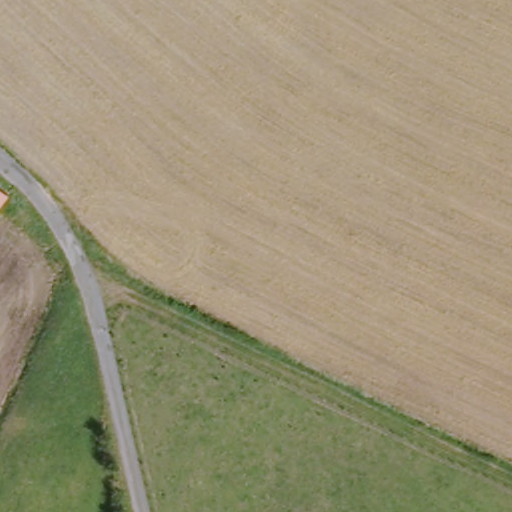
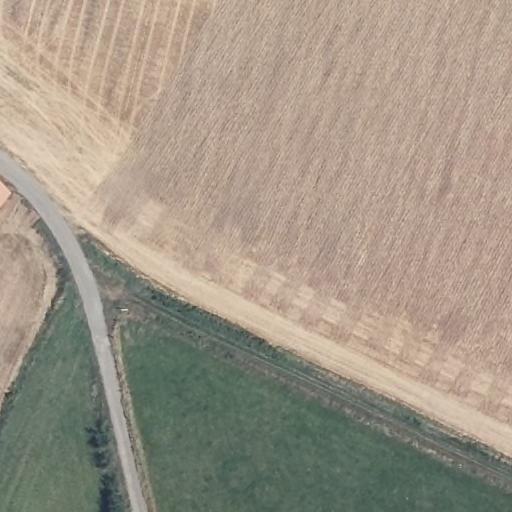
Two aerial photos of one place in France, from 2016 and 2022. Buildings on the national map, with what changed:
unchanged [(0,190),(9,197),(0,208),(0,190)]

